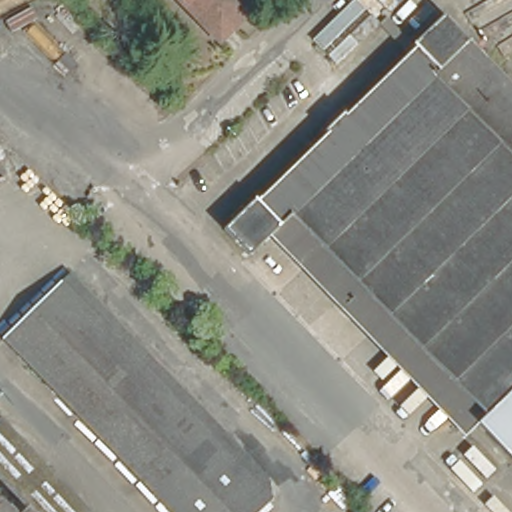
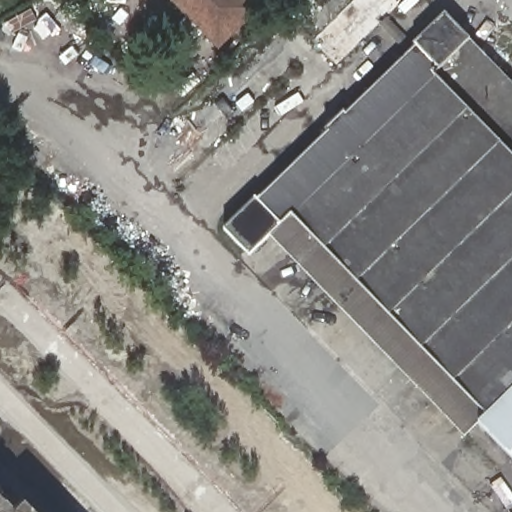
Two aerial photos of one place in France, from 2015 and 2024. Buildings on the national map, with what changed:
unchanged [(257,5),(232,30),(222,39),(219,43),(178,0),(253,0),(257,5)]
unchanged [(349,0),(400,0),(335,64),(311,38),(349,0)]
unchanged [(244,255),(217,229),(249,198),(251,200),(322,133),(341,114),(410,47),(407,44),(416,36),(438,13),(464,39),(512,88),(512,462),(505,455),(474,424),(460,437),(263,235),(244,255)]
unchanged [(0,39),(0,26),(6,37),(0,39)]
demolished [(271,493),(251,512),(176,512),(2,334),(61,277),(271,493)]
unchanged [(49,473),(87,512),(17,512),(12,507),(0,494),(0,423),(49,473)]
unchanged [(12,507),(17,512),(0,512),(0,494),(12,507)]

